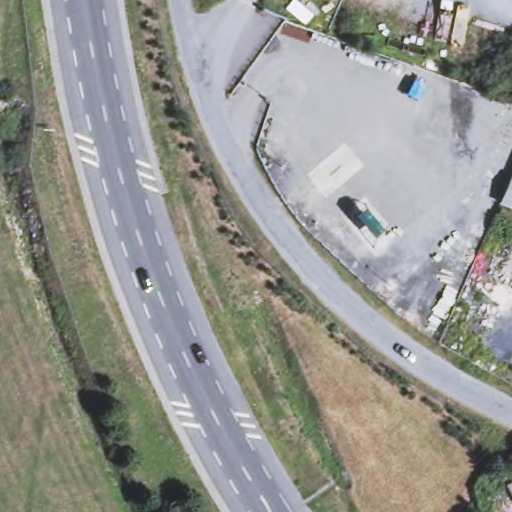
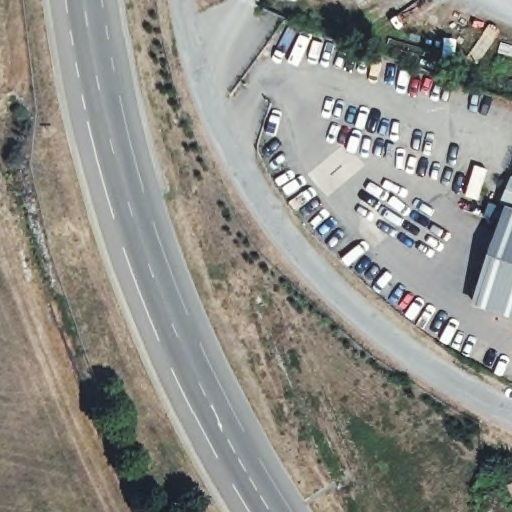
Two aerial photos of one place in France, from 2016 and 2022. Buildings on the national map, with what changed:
new [(512,178),(512,208),(500,204),(511,177),(512,178)]
demolished [(512,183),(512,213),(502,210),(511,182),(512,183)]
new [(512,212),(512,317),(471,303),(501,208),(512,212)]

